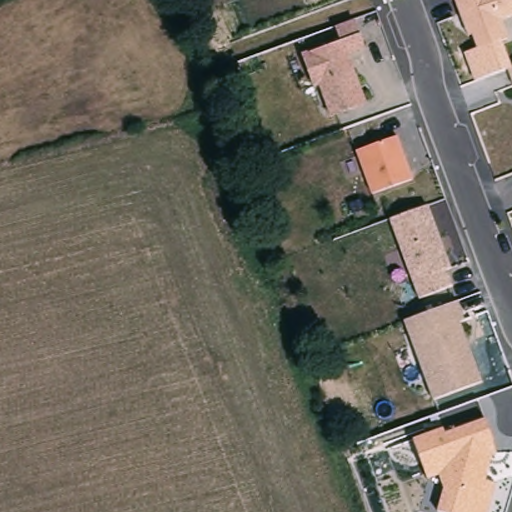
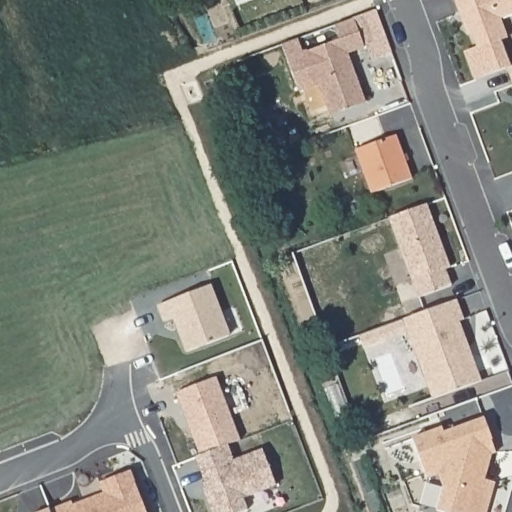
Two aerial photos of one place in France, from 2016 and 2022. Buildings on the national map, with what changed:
unchanged [(510,38),(477,46),(457,0),(512,0),(512,14),(502,17),(510,38)]
unchanged [(366,46),(351,53),(367,103),(330,114),(318,85),(314,87),(302,51),(338,38),(333,25),(356,18),(366,46)]
unchanged [(512,76),(509,65),(512,64),(512,76)]
unchanged [(412,178),(370,193),(355,149),(395,134),(412,178)]
unchanged [(450,268),(445,270),(451,286),(417,297),(387,217),(427,203),(450,268)]
new [(209,287),(228,336),(187,352),(173,318),(164,322),(157,306),(209,287)]
unchanged [(465,320),(458,324),(481,379),(433,398),(404,319),(458,299),(465,320)]
new [(216,378),(240,441),(227,446),(199,456),(176,394),(216,378)]
unchanged [(497,449),(487,480),(495,484),(486,512),(441,512),(436,511),(442,484),(438,476),(427,480),(412,436),(441,426),(443,430),(485,417),(497,449)]
new [(195,458),(199,456),(227,446),(232,462),(262,451),(275,486),(242,499),(247,511),(243,512),(211,512),(207,501),(202,488),(206,487),(195,458)]
new [(71,502),(72,505),(103,493),(99,483),(130,471),(145,512),(50,512),(49,510),(71,502)]
new [(49,509),(49,510),(50,512),(41,512),(49,509)]

